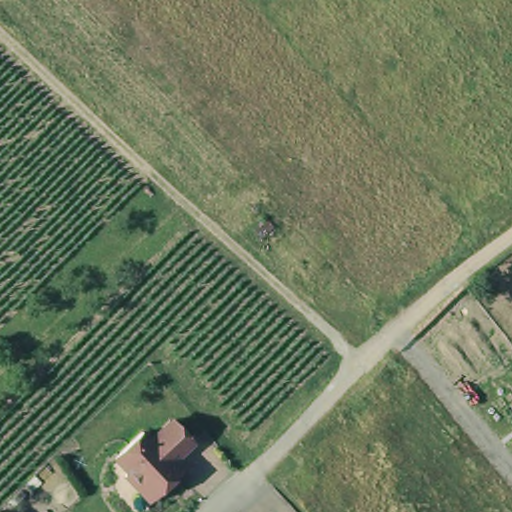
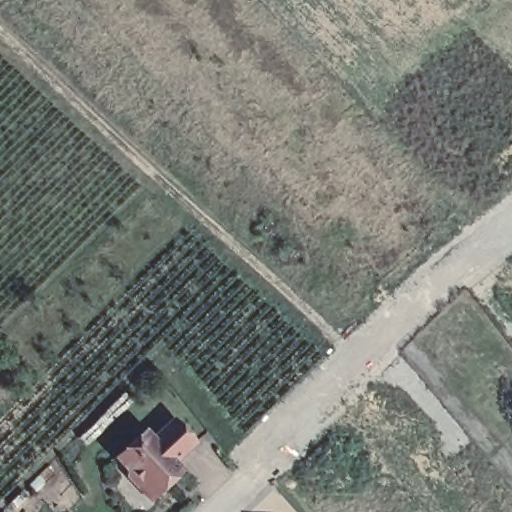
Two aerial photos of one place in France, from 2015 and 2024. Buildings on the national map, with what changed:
unchanged [(157,442),(177,422),(199,445),(178,467),(184,472),(153,503),(127,480),(132,475),(115,460),(144,430),(157,442)]

